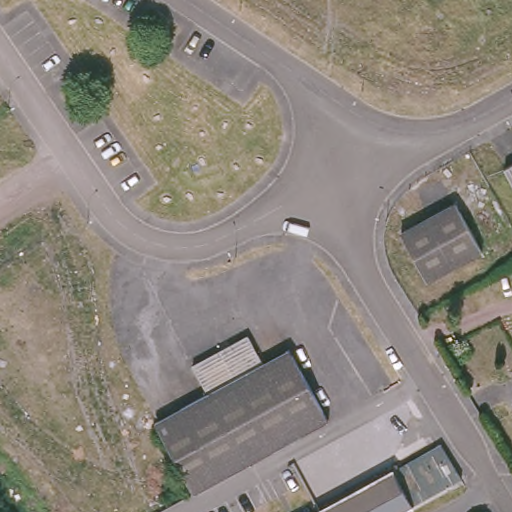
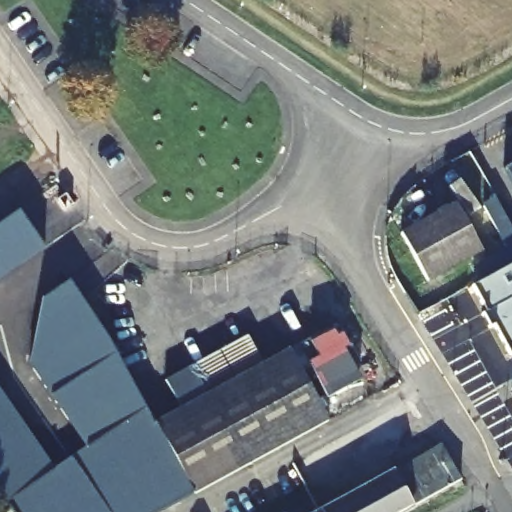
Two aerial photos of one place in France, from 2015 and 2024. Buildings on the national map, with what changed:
unchanged [(512,185),(504,171),(512,166),(512,185)]
unchanged [(455,203),(482,251),(427,282),(400,234),(455,203)]
new [(20,210),(45,248),(0,278),(0,224),(20,210)]
new [(512,353),(509,354),(495,324),(490,327),(482,316),(488,313),(472,286),(512,265),(512,353)]
new [(85,448),(29,363),(42,299),(70,281),(110,345),(150,417),(145,419),(185,492),(152,512),(12,512),(0,494),(0,391),(55,470),(85,448)]
new [(330,328),(360,381),(327,399),(298,345),(330,328)]
unchanged [(198,391),(183,363),(238,333),(254,360),(280,345),(320,418),(185,492),(145,419),(198,391)]
unchanged [(512,407),(512,414),(509,409),(512,407)]
unchanged [(407,512),(322,512),(427,454),(440,447),(462,482),(407,512)]

